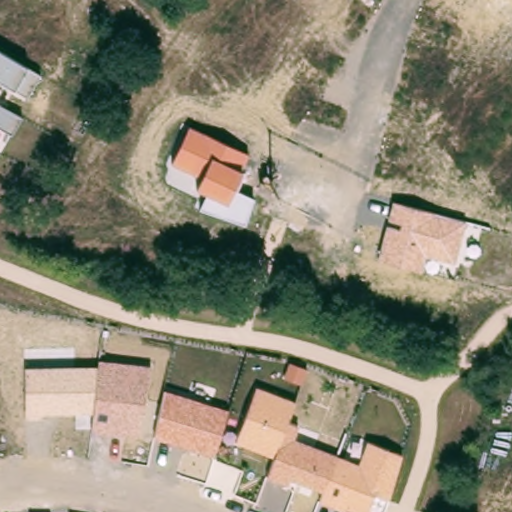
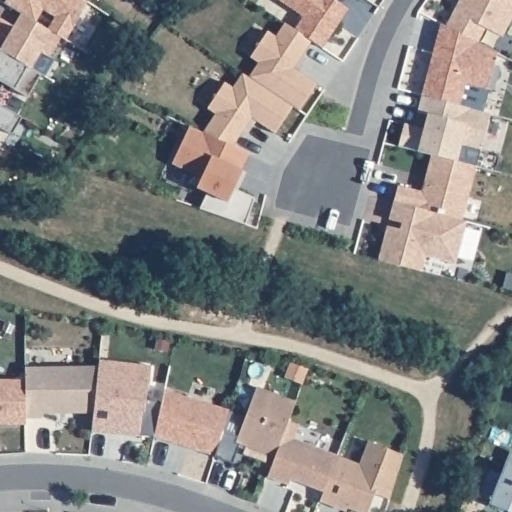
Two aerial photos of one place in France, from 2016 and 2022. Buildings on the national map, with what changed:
new [(30,70),(26,67),(0,52),(0,18),(16,25),(22,11),(7,2),(8,0),(86,0),(88,1),(67,40),(60,36),(49,56),(41,51),(30,70)]
new [(322,46),(313,41),(294,69),(316,84),(299,109),(294,105),(275,132),(252,117),(233,146),(203,132),(215,113),(208,107),(225,81),(233,86),(244,74),(249,77),(259,61),(251,55),(268,30),(277,35),(285,24),(294,29),(303,15),(281,0),(335,0),(349,9),(322,46)]
new [(393,202),(398,186),(423,192),(432,154),(418,149),(399,143),(405,123),(416,126),(441,24),(446,26),(459,0),(512,0),(512,16),(503,35),(485,25),(478,42),(497,50),(488,88),(465,82),(461,105),(488,112),(480,149),(461,144),(458,160),(475,165),(463,220),(393,202)]
unchanged [(26,67),(40,76),(28,98),(16,89),(0,80),(0,52),(26,67)]
unchanged [(22,117),(12,134),(0,127),(0,105),(22,117)]
unchanged [(206,193),(195,188),(202,175),(171,162),(188,125),(249,153),(241,170),(245,174),(238,190),(255,199),(244,226),(199,210),(206,193)]
unchanged [(393,202),(465,221),(456,262),(425,255),(422,272),(377,261),(393,202)]
unchanged [(94,412),(42,413),(41,417),(25,417),(26,367),(98,367),(99,361),(152,367),(145,416),(141,415),(138,436),(93,431),(94,412)]
new [(26,378),(25,417),(25,422),(0,423),(0,379),(26,378)]
unchanged [(274,456),(236,443),(257,387),(296,401),(289,422),(299,425),(294,440),(359,464),(367,441),(402,455),(389,500),(374,495),(368,512),(349,512),(318,502),(322,492),(290,478),(287,486),(268,478),(274,456)]
unchanged [(155,437),(164,390),(227,411),(214,456),(155,437)]
new [(492,500),(481,495),(489,471),(502,476),(511,451),(512,452),(512,512),(490,503),(492,500)]

